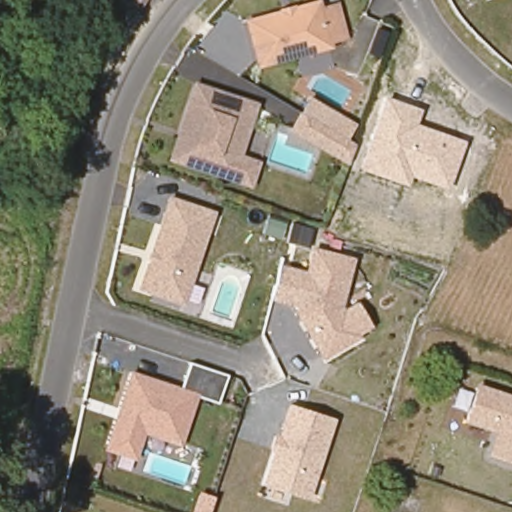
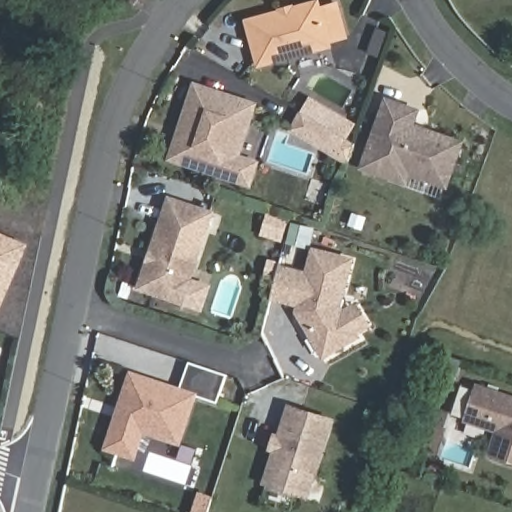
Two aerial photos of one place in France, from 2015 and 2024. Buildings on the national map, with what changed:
unchanged [(130,0),(143,0),(139,6),(130,0)]
unchanged [(292,57),(257,67),(246,23),(280,14),(279,12),(290,10),(315,4),(317,8),(317,11),(334,6),(343,37),(326,42),(327,47),(292,57)]
unchanged [(224,178),(167,160),(190,89),(247,107),(224,178)]
unchanged [(447,188),(408,177),(406,184),(357,166),(385,96),(421,108),(416,124),(465,140),(447,188)]
unchanged [(303,105),(335,123),(355,135),(348,152),(293,121),(303,105)]
unchanged [(185,304),(135,289),(167,194),(217,210),(185,304)]
new [(25,243),(0,308),(0,234),(25,243)]
unchanged [(299,312),(300,305),(290,303),(296,280),(290,278),(291,271),(307,275),(315,250),(352,259),(340,305),(356,336),(325,356),(299,312)]
unchanged [(356,336),(341,308),(356,301),(371,326),(356,336)]
unchanged [(181,444),(145,434),(136,461),(102,450),(128,370),(198,390),(181,444)]
unchanged [(512,463),(486,454),(492,431),(462,420),(476,382),(512,394),(512,463)]
unchanged [(311,497),(261,483),(286,402),(335,418),(311,497)]

